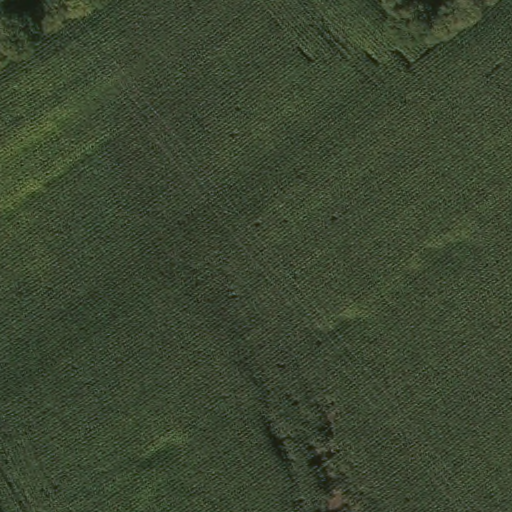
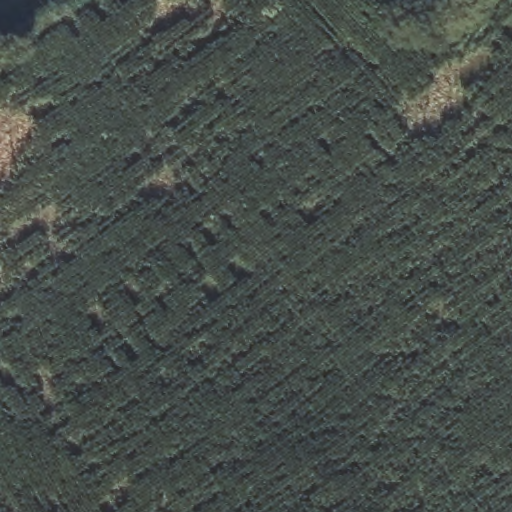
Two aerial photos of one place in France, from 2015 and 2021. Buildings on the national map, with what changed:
unchanged [(435,5),(430,0),(440,0),(435,5)]

